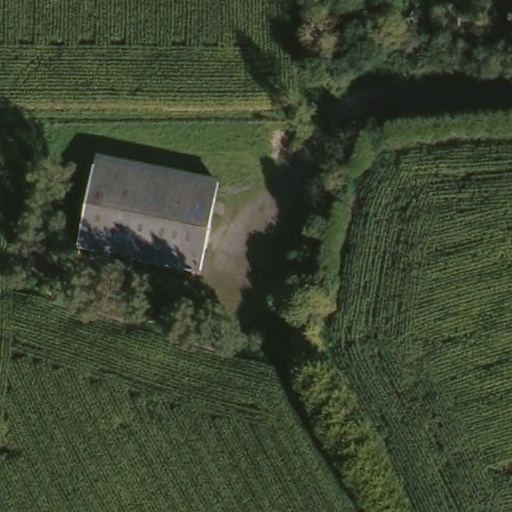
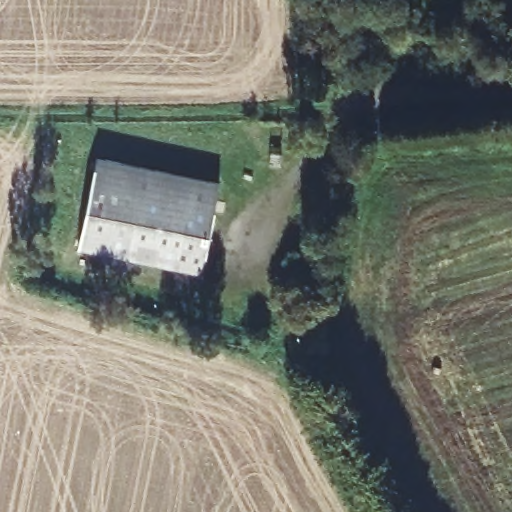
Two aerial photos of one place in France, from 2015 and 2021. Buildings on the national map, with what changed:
unchanged [(84,246),(104,155),(220,180),(216,197),(222,198),(206,273),(84,246)]

